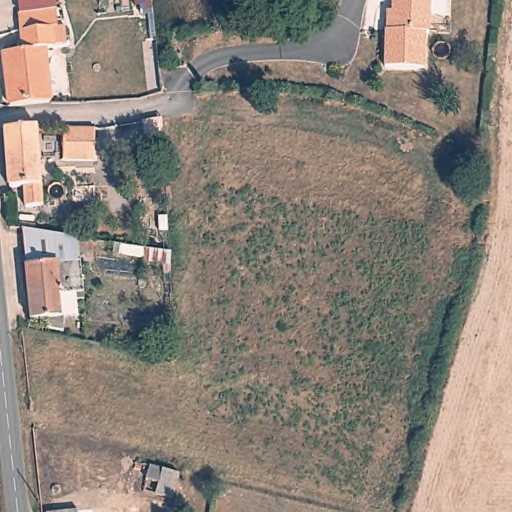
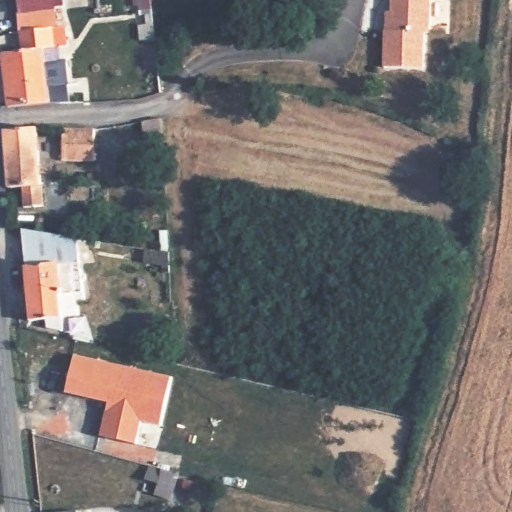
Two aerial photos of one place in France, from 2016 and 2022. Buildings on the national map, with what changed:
unchanged [(2,51),(20,49),(16,0),(56,0),(59,29),(64,29),(65,47),(46,49),(51,104),(9,107),(2,51)]
unchanged [(427,40),(423,40),(422,77),(383,76),(384,40),(393,40),(394,0),(428,0),(427,40)]
unchanged [(100,163),(43,162),(12,163),(9,134),(44,131),(101,134),(100,163)]
unchanged [(44,190),(45,208),(34,209),(32,190),(14,191),(12,163),(43,162),(45,175),(58,175),(59,189),(44,190)]
unchanged [(61,297),(38,298),(29,298),(24,251),(59,247),(60,255),(77,255),(82,296),(61,297)]
unchanged [(49,332),(48,325),(31,326),(29,298),(38,298),(61,297),(64,335),(49,332)]
new [(108,404),(65,394),(75,354),(173,377),(162,426),(142,421),(137,445),(101,436),(108,404)]
new [(173,500),(156,496),(159,485),(145,481),(150,466),(180,473),(173,500)]
demolished [(157,507),(144,504),(150,478),(165,482),(157,507)]

